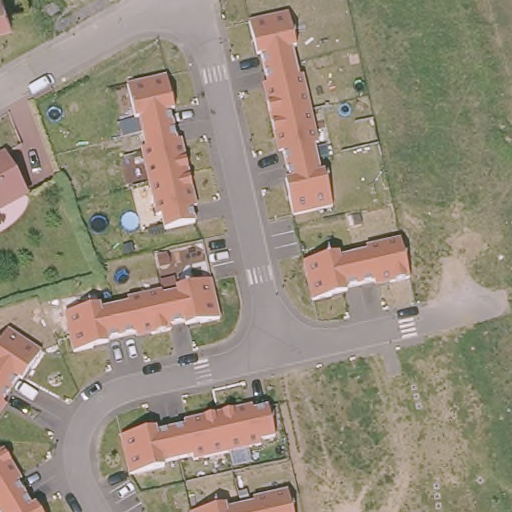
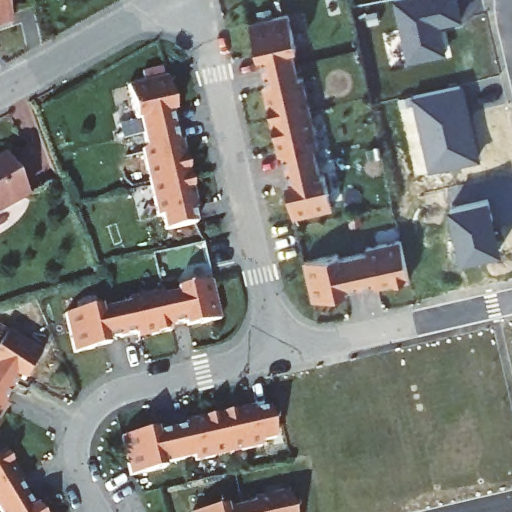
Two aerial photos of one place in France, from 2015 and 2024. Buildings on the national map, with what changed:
unchanged [(15,17),(0,23),(0,0),(9,0),(15,17)]
new [(407,63),(392,0),(458,0),(462,20),(440,26),(446,55),(407,63)]
unchanged [(298,50),(292,50),(300,77),(304,76),(319,145),(316,146),(322,175),(325,174),(333,210),(293,218),(286,183),(289,182),(283,155),(278,155),(263,87),(267,86),(262,57),(257,59),(249,22),(288,12),(298,50)]
unchanged [(196,223),(164,231),(161,216),(156,218),(141,152),(145,152),(142,136),(124,140),(121,125),(134,122),(127,86),(166,78),(175,111),(172,113),(178,142),(182,141),(198,210),(193,211),(196,223)]
new [(411,96),(464,85),(481,160),(429,172),(411,96)]
unchanged [(10,157),(32,197),(1,214),(0,214),(0,163),(10,157)]
new [(449,207),(490,198),(502,251),(461,260),(449,207)]
unchanged [(367,251),(366,247),(400,240),(409,280),(375,287),(373,282),(347,288),(348,292),(312,301),(304,262),(340,254),(340,257),(367,251)]
unchanged [(128,303),(127,298),(161,291),(162,295),(176,292),(176,287),(212,280),(220,319),(185,327),(184,322),(169,327),(170,331),(136,340),(135,333),(107,339),(108,344),(74,353),(66,315),(101,305),(101,310),(128,303)]
unchanged [(8,330),(42,352),(22,383),(18,381),(5,405),(8,407),(0,417),(0,342),(8,330)]
unchanged [(268,407),(274,439),(262,442),(262,446),(194,461),(193,458),(165,465),(165,468),(130,476),(122,438),(155,428),(156,432),(184,425),(184,421),(253,406),(254,410),(268,407)]
unchanged [(35,505),(39,512),(0,512),(0,453),(4,450),(22,482),(19,484),(32,506),(35,505)]
unchanged [(254,500),(288,491),(293,512),(200,512),(226,506),(227,508),(254,503),(254,500)]

